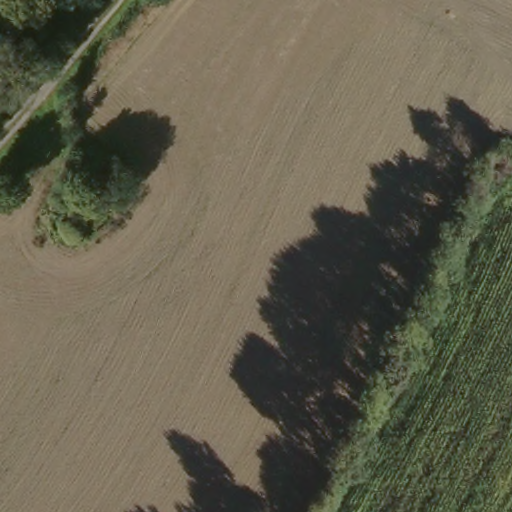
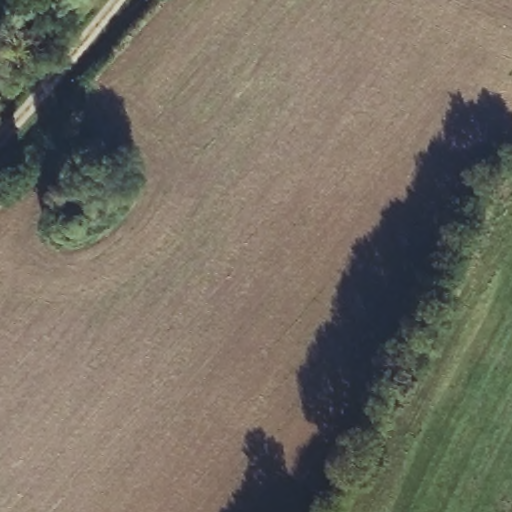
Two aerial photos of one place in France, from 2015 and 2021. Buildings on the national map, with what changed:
[]

